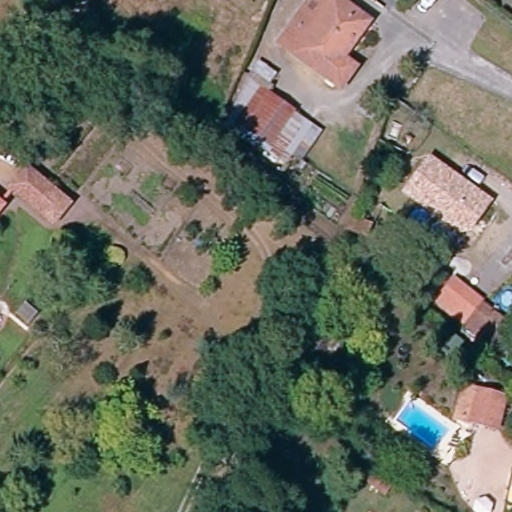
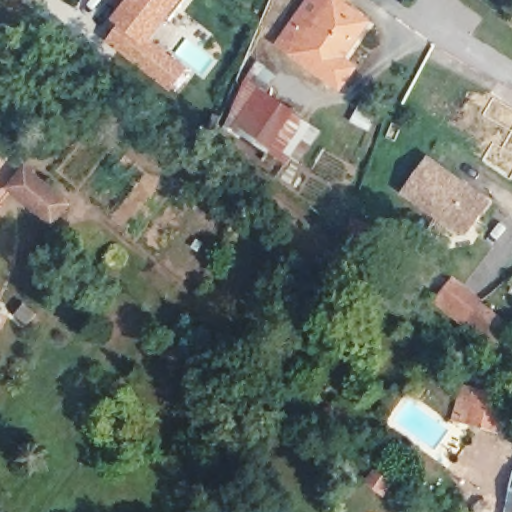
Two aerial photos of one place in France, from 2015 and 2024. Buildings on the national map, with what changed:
new [(119,26),(111,21),(123,5),(117,0),(184,0),(151,41),(188,68),(170,92),(106,42),(119,26)]
unchanged [(338,69),(341,71),(327,89),(270,42),(304,0),(345,0),(341,5),(369,30),(338,69)]
unchanged [(284,168),(217,123),(245,81),(309,126),(284,168)]
new [(494,99),(512,109),(512,133),(484,117),(494,99)]
new [(503,149),(512,133),(512,179),(511,182),(483,163),(494,144),(503,149)]
unchanged [(493,200),(468,234),(458,234),(402,193),(429,154),(493,200)]
unchanged [(53,221),(12,186),(24,170),(66,205),(53,221)]
unchanged [(494,312),(476,334),(446,310),(464,287),(494,312)]
unchanged [(28,322),(19,314),(30,300),(39,308),(28,322)]
unchanged [(475,425),(450,420),(456,389),(486,395),(491,396),(494,397),(488,428),(479,426),(475,425)]
unchanged [(512,481),(512,505),(508,504),(512,481)]

